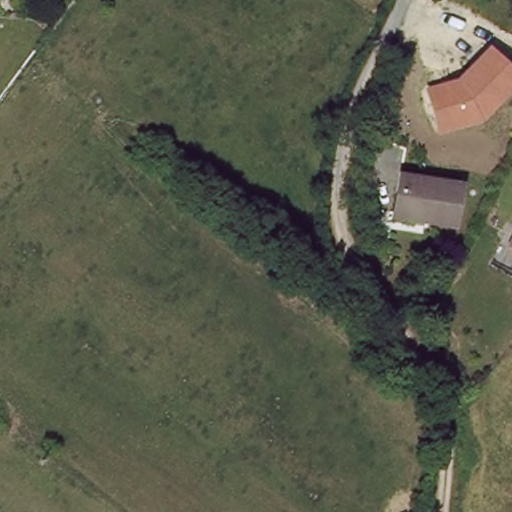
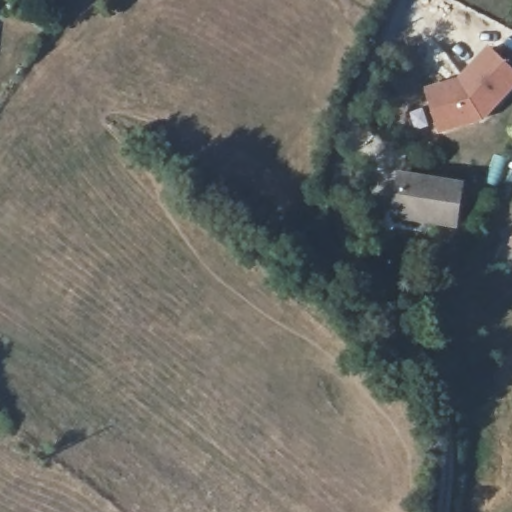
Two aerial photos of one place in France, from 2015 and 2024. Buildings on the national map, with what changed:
unchanged [(483,122),(440,135),(428,88),(457,82),(490,47),(512,69),(512,93),(483,122)]
unchanged [(460,184),(454,225),(417,218),(418,212),(396,208),(402,172),(460,184)]

